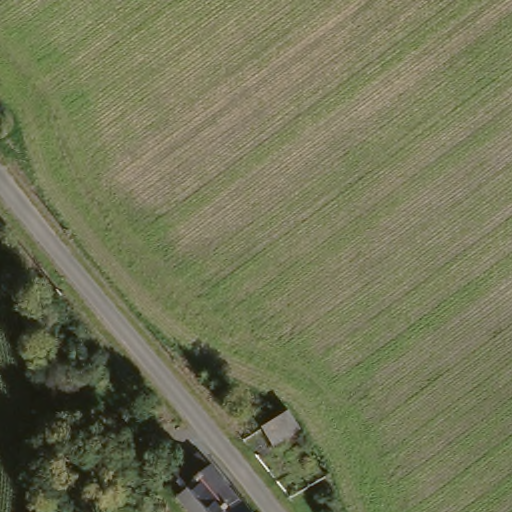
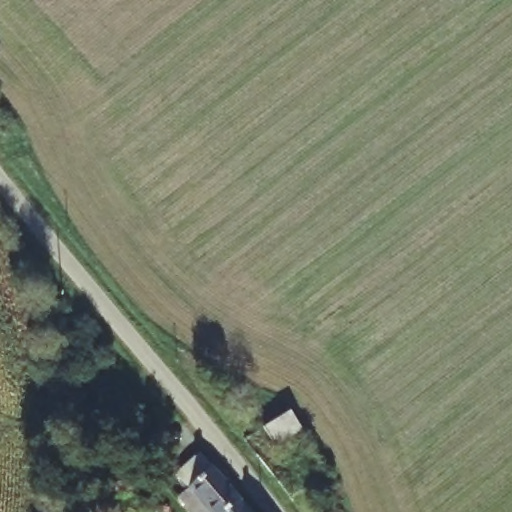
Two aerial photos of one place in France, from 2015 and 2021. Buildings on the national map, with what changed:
unchanged [(275,450),(261,431),(288,412),(293,409),(307,429),(295,436),(275,450)]
unchanged [(187,486),(180,477),(174,471),(198,452),(204,458),(244,502),(251,512),(191,512),(177,495),(187,486)]
unchanged [(139,484),(101,489),(100,470),(137,467),(139,484)]

